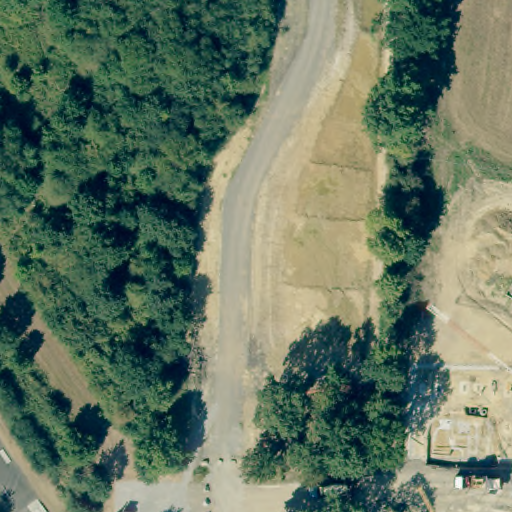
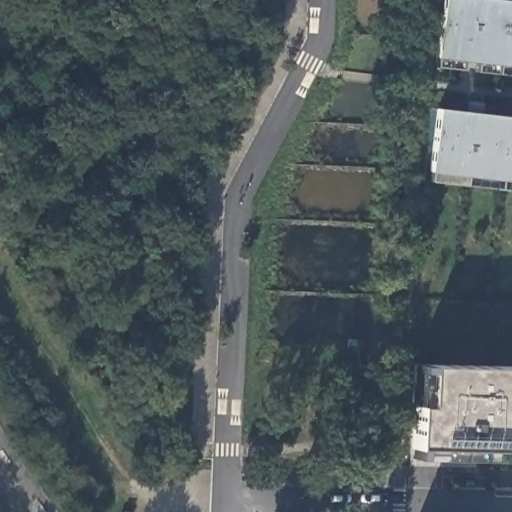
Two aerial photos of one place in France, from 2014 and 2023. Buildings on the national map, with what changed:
new [(512,1),(512,67),(434,58),(441,0),(506,0),(512,1)]
new [(512,117),(512,190),(429,180),(438,109),(512,117)]
new [(412,365),(425,366),(512,368),(512,461),(411,457),(412,447),(412,404),(412,365)]

